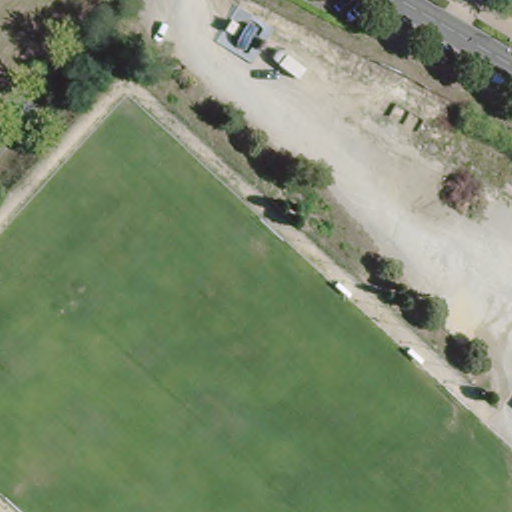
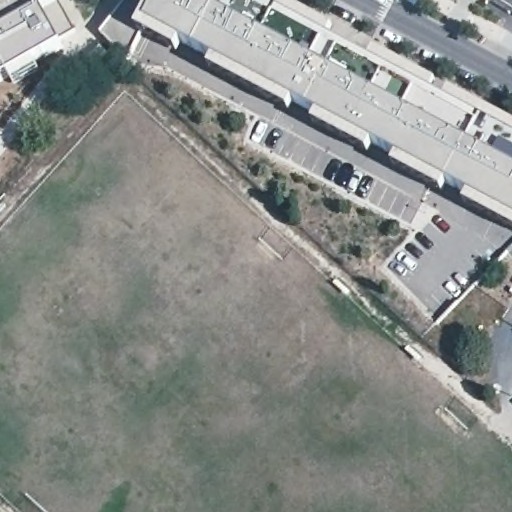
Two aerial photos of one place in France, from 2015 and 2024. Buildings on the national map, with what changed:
new [(62,2),(73,21),(78,30),(62,39),(65,46),(37,61),(42,71),(17,85),(12,76),(0,82),(0,0),(61,0),(62,2)]
new [(263,2),(272,7),(276,0),(281,0),(333,29),(329,37),(371,59),(375,50),(437,82),(432,92),(445,99),(450,90),(512,124),(512,228),(463,202),(468,194),(447,182),(442,192),(395,167),(400,157),(374,143),(368,153),(313,124),(317,114),(294,101),(289,111),(211,69),(215,60),(182,41),(177,51),(138,31),(127,60),(101,32),(127,0),(264,0),(263,2)]

